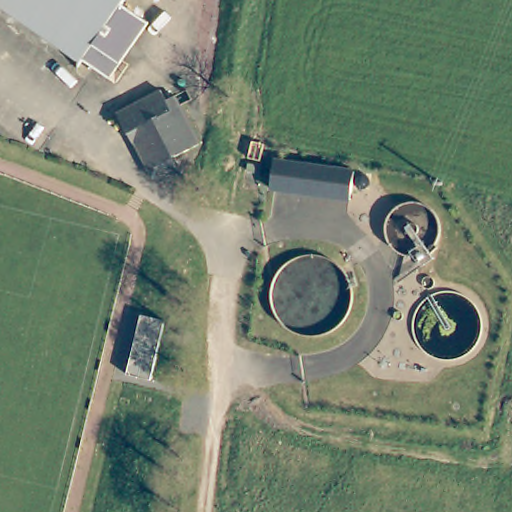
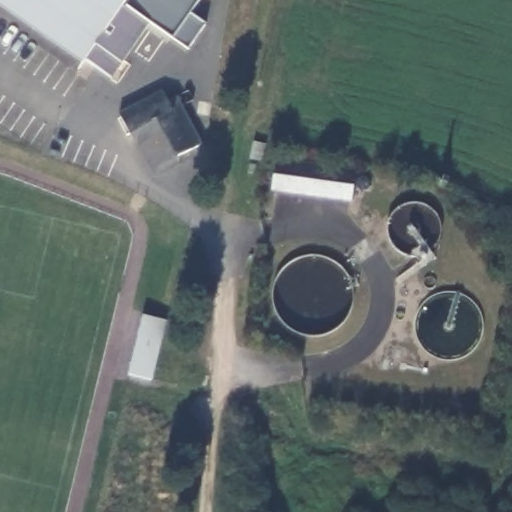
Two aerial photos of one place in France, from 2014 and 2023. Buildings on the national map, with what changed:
unchanged [(147,26),(108,80),(85,63),(80,68),(0,11),(0,0),(130,0),(124,9),(147,26)]
new [(204,23),(186,48),(147,26),(124,9),(130,0),(199,0),(190,13),(204,23)]
unchanged [(153,169),(138,141),(122,113),(165,89),(171,100),(179,96),(202,141),(178,155),(183,164),(158,178),(153,169)]
unchanged [(346,169),(342,197),(262,185),(267,156),(346,169)]
unchanged [(166,322),(153,381),(129,375),(142,316),(166,322)]

